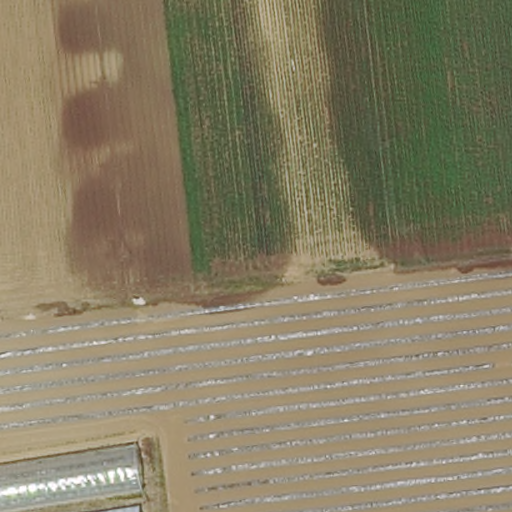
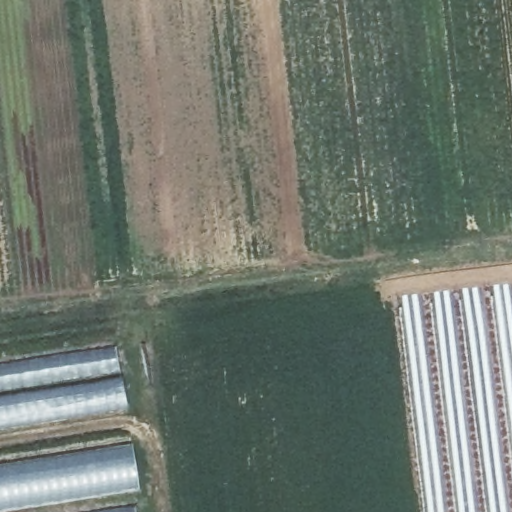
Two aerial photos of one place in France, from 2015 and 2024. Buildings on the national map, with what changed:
new [(0,430),(0,362),(118,344),(127,410),(0,430)]
unchanged [(129,447),(137,495),(139,512),(0,512),(0,467),(129,447)]

